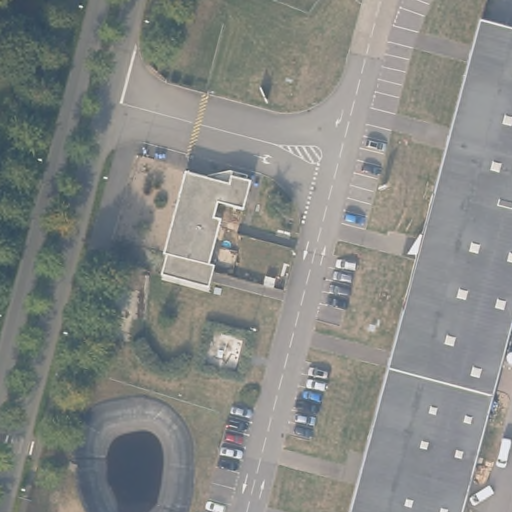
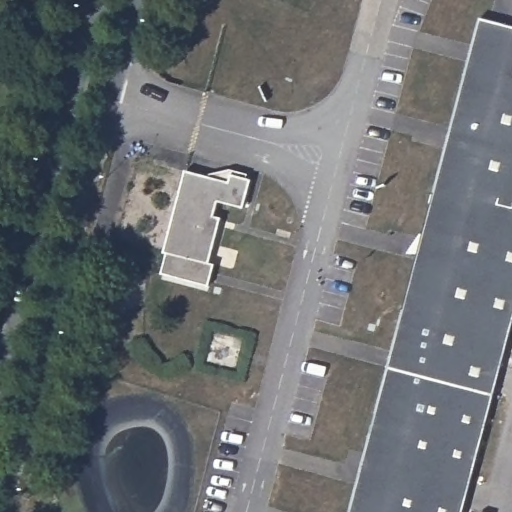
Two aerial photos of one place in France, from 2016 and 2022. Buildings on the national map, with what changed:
unchanged [(351,512),(479,19),(512,27),(512,319),(462,512),(351,512)]
unchanged [(223,187),(225,180),(245,185),(238,212),(213,206),(209,221),(216,223),(204,269),(209,271),(203,291),(158,279),(164,258),(160,258),(182,176),(223,187)]

